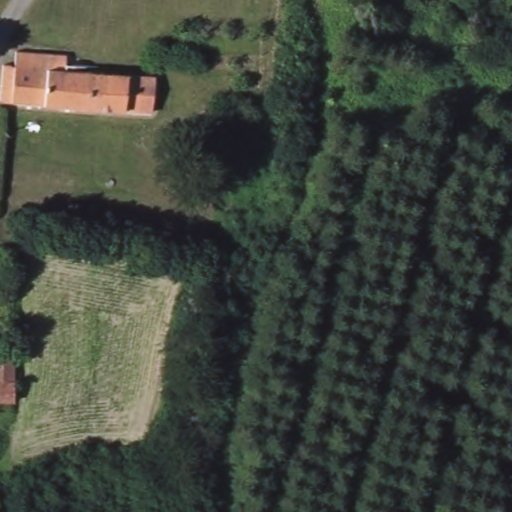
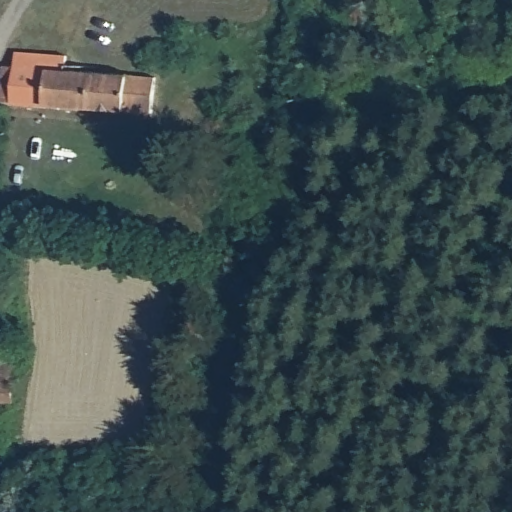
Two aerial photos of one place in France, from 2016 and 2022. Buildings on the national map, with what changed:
unchanged [(0,101),(0,90),(2,65),(15,66),(16,51),(65,54),(64,70),(96,72),(152,76),(155,76),(152,110),(0,101)]
unchanged [(11,361),(11,399),(9,400),(10,415),(0,415),(0,360),(11,361)]

